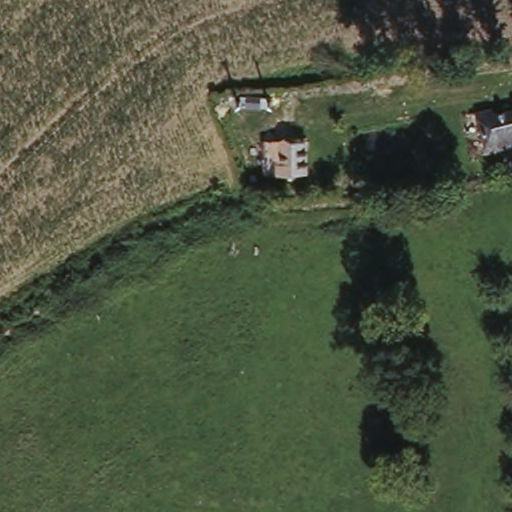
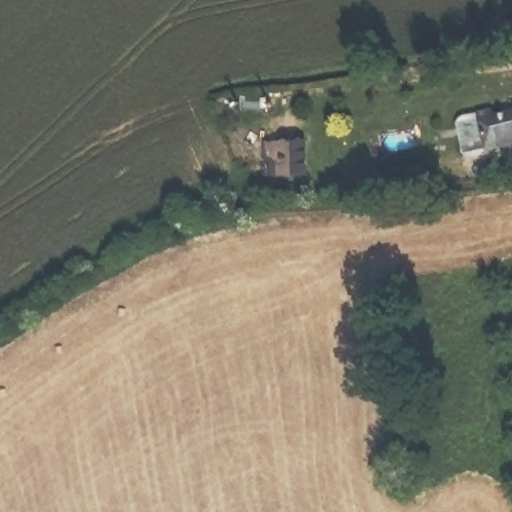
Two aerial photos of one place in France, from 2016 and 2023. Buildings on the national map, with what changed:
unchanged [(493,108),(512,104),(512,144),(484,149),(474,101),(490,98),(493,108)]
unchanged [(309,144),(311,179),(277,179),(276,161),(265,161),(265,144),(309,144)]

